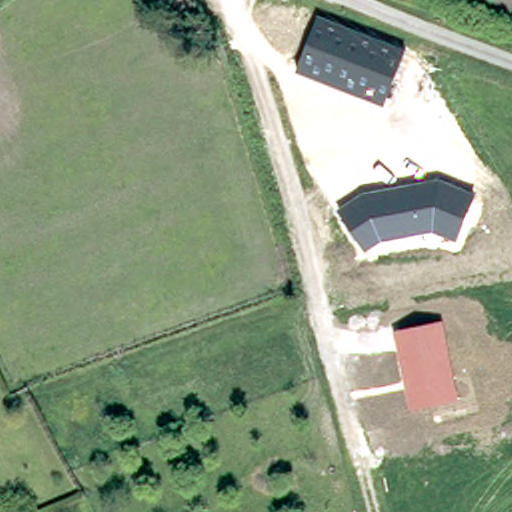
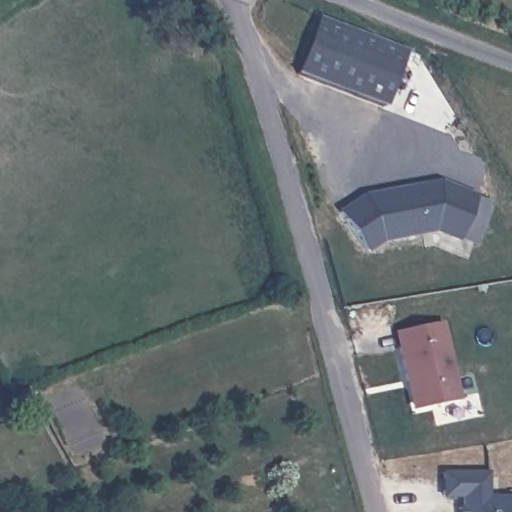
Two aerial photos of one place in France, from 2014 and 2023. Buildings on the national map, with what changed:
unchanged [(405,49),(382,104),(296,69),(319,13),(405,49)]
unchanged [(444,179),(473,194),(455,240),(432,229),(380,239),(363,251),(337,207),(444,179)]
unchanged [(443,321),(462,402),(413,412),(393,331),(443,321)]
new [(512,495),(512,512),(461,512),(461,497),(442,496),(442,472),(487,472),(488,495),(512,495)]

